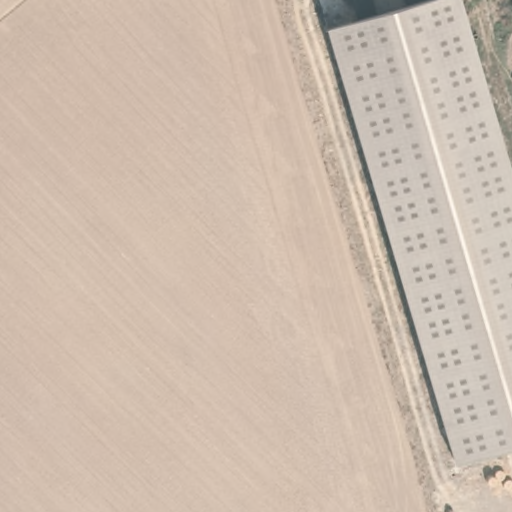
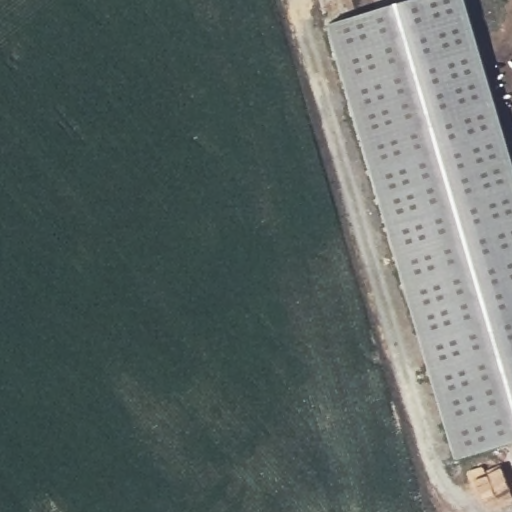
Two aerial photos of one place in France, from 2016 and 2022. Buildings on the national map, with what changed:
unchanged [(363,174),(313,34),(409,0),(444,0),(489,130),(363,174)]
unchanged [(489,130),(512,196),(512,443),(462,460),(363,174),(489,130)]

